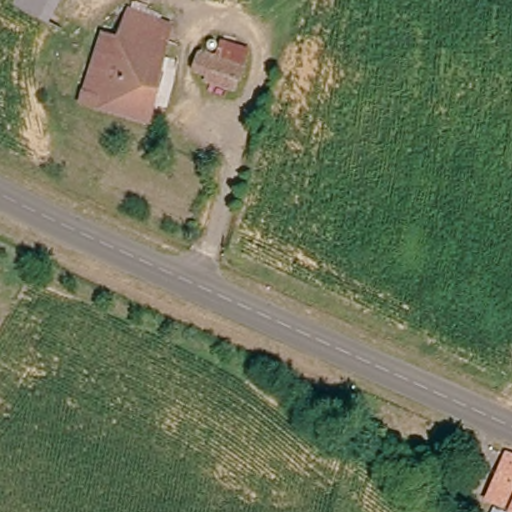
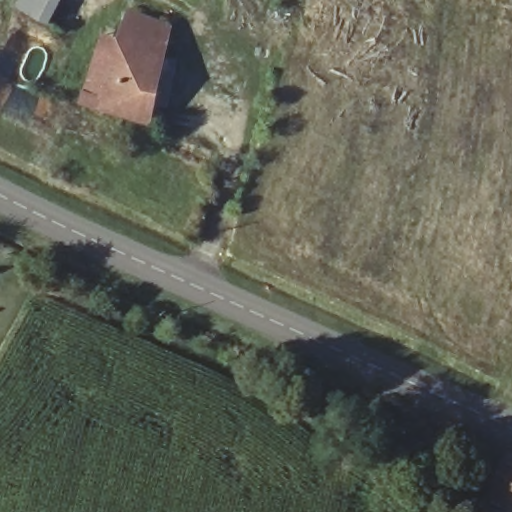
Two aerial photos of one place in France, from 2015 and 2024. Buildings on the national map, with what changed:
unchanged [(48,23),(19,9),(23,0),(58,0),(48,23)]
unchanged [(81,107),(95,53),(99,37),(120,42),(125,21),(172,32),(149,124),(81,107)]
unchanged [(245,67),(235,96),(206,87),(210,76),(194,71),(200,54),(217,59),(221,47),(248,56),(245,67)]
unchanged [(507,456),(512,458),(512,511),(488,501),(507,456)]

